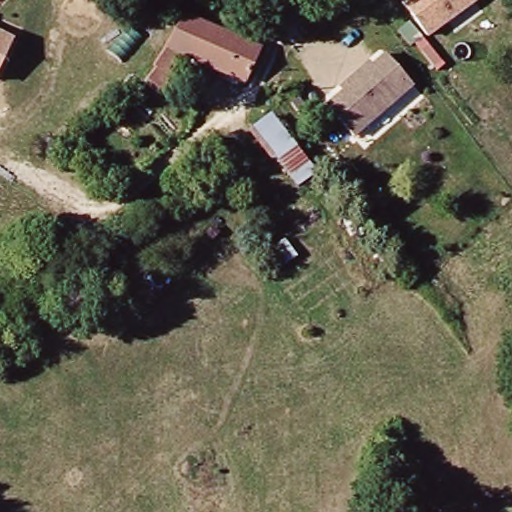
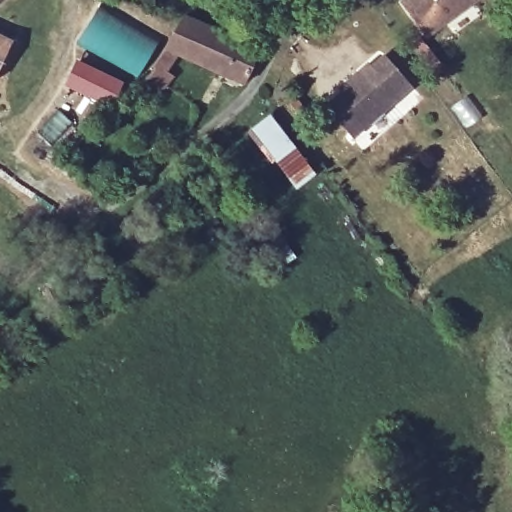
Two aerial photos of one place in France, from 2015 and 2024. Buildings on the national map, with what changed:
unchanged [(235,2),(232,0),(238,0),(235,2)]
unchanged [(401,2),(404,0),(480,0),(427,39),(401,2)]
new [(102,5),(160,41),(140,75),(82,42),(102,5)]
unchanged [(246,84),(190,56),(182,60),(172,81),(179,84),(171,96),(150,83),(179,16),(264,53),(246,84)]
unchanged [(12,42),(0,67),(0,37),(12,42)]
unchanged [(329,101),(344,89),(342,86),(358,72),(373,59),(377,63),(392,51),(417,84),(367,124),(354,134),(329,101)]
new [(78,59),(124,81),(111,106),(67,85),(78,59)]
unchanged [(269,185),(276,175),(246,135),(270,116),(316,178),(285,207),(269,185)]

